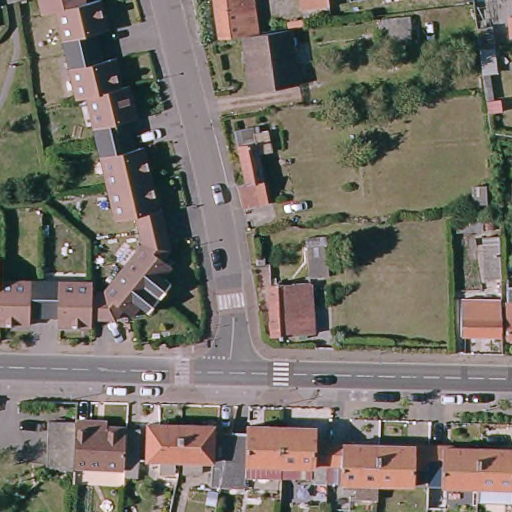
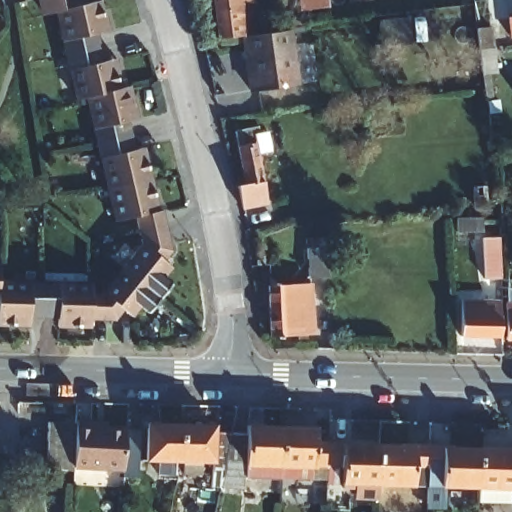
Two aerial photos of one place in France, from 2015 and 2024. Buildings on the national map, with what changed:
unchanged [(97,10),(100,10),(102,24),(92,27),(100,56),(110,53),(114,67),(110,68),(115,84),(123,82),(130,114),(124,116),(131,144),(137,143),(152,205),(157,205),(167,244),(157,256),(165,262),(157,272),(165,279),(141,307),(133,301),(125,310),(117,304),(108,316),(86,315),(86,323),(52,322),(52,315),(25,314),(24,321),(0,320),(0,279),(87,282),(87,287),(97,288),(137,240),(129,212),(114,215),(85,91),(75,94),(69,64),(65,64),(59,34),(61,33),(55,6),(42,9),(35,5),(34,0),(95,0),(97,10)]
unchanged [(212,0),(253,0),(257,25),(242,27),(216,31),(212,0)]
unchanged [(329,6),(300,8),(299,0),(329,0),(329,6)]
unchanged [(257,25),(283,21),(292,77),(251,83),(242,27),(257,25)]
unchanged [(492,26),(495,71),(479,72),(475,28),(492,26)]
unchanged [(480,92),(512,90),(512,105),(482,107),(480,93),(480,92)]
unchanged [(260,129),(264,150),(257,151),(252,152),(261,200),(236,206),(230,182),(237,181),(229,128),(252,122),(254,130),(260,129)]
unchanged [(446,235),(464,235),(464,248),(447,248),(446,235)]
unchanged [(484,284),(480,242),(494,241),(497,282),(484,284)]
unchanged [(309,275),(309,269),(310,246),(330,246),(329,269),(329,275),(309,275)]
unchanged [(285,282),(307,282),(308,337),(265,335),(265,281),(285,282)]
unchanged [(465,333),(464,299),(500,300),(502,334),(465,333)]
unchanged [(507,299),(512,299),(512,335),(509,335),(507,299)]
unchanged [(245,434),(245,416),(281,417),(280,471),(244,470),(242,478),(217,477),(219,469),(226,433),(245,434)]
unchanged [(41,463),(42,417),(73,417),(73,422),(71,460),(71,465),(41,463)]
unchanged [(134,472),(119,472),(120,463),(71,460),(73,422),(73,417),(87,417),(102,417),(102,423),(122,424),(136,424),(134,472)]
unchanged [(316,417),(315,435),(327,435),(327,472),(280,471),(281,417),(316,417)]
unchanged [(172,458),(172,471),(155,471),(157,457),(144,456),(146,421),(179,422),(177,458),(172,458)]
unchanged [(179,422),(211,423),(210,458),(200,458),(199,471),(180,469),(180,458),(177,458),(179,422)]
unchanged [(377,437),(375,476),(375,492),(357,491),(357,475),(327,474),(327,472),(327,435),(377,437)]
unchanged [(427,438),(425,477),(375,476),(377,437),(427,438)]
unchanged [(475,479),(446,479),(445,497),(425,496),(425,477),(427,438),(476,440),(475,479)]
unchanged [(476,440),(512,441),(512,480),(475,479),(476,440)]

